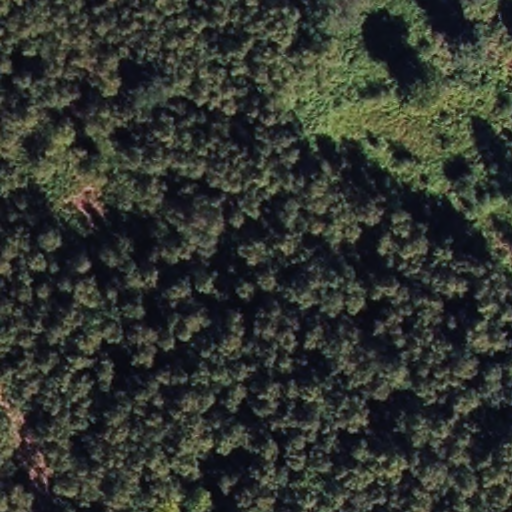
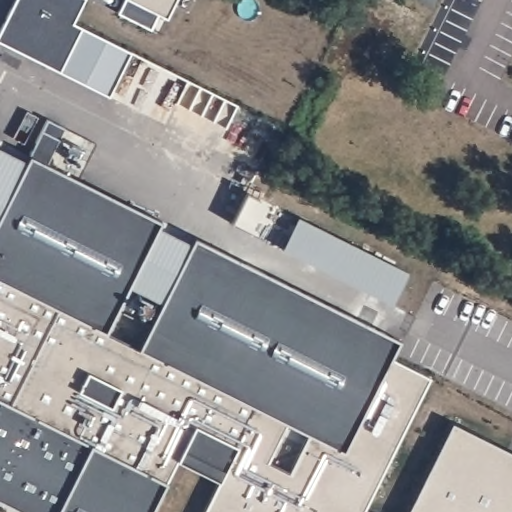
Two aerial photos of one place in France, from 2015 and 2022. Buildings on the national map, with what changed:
new [(0,31),(15,0),(85,0),(73,23),(81,27),(60,70),(0,40),(0,31)]
new [(124,0),(175,0),(168,12),(162,9),(160,14),(152,29),(118,11),(124,0)]
new [(131,51),(108,95),(60,70),(81,27),(131,51)]
new [(218,479),(178,459),(165,483),(151,512),(25,512),(0,499),(0,148),(27,161),(30,155),(47,118),(65,127),(47,164),(161,220),(157,227),(192,245),(195,238),(399,340),(390,357),(432,377),(366,511),(368,512),(202,512),(218,479)]
new [(328,269),(293,252),(282,246),(297,215),(308,220),(344,237),(328,269)]
new [(344,237),(407,268),(392,300),(328,269),(344,237)]
new [(452,422),(512,451),(512,512),(408,512),(452,422)]

